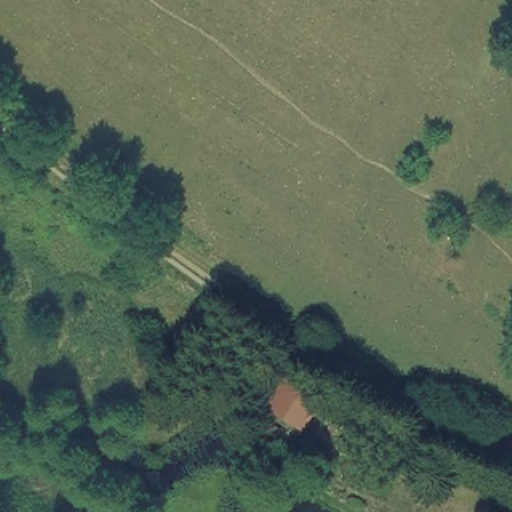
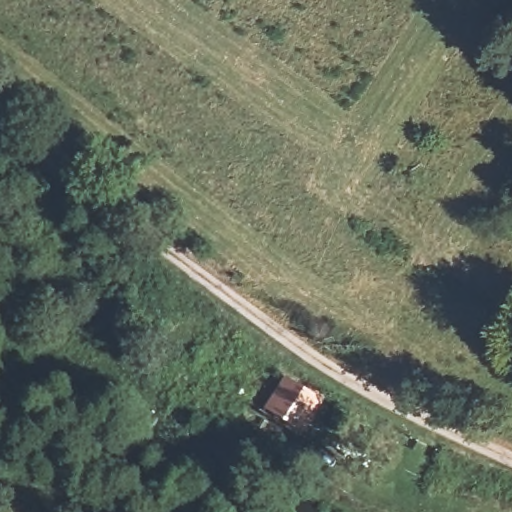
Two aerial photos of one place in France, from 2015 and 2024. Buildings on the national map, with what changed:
unchanged [(301,435),(262,410),(284,375),(322,402),(301,435)]

